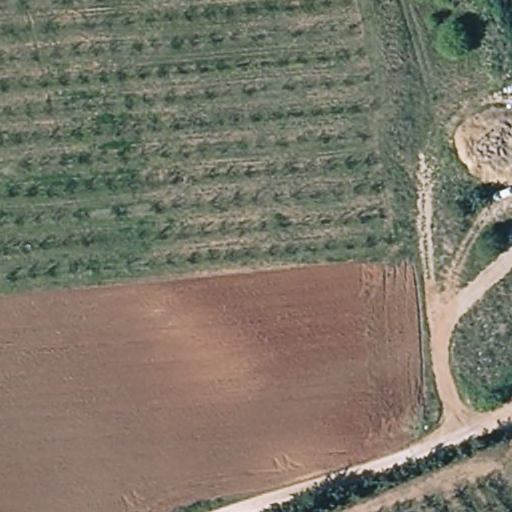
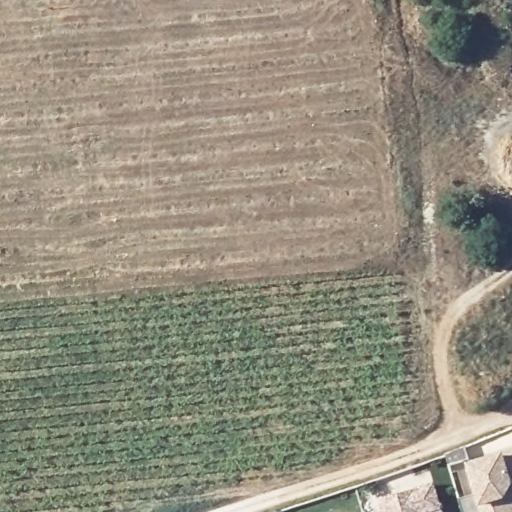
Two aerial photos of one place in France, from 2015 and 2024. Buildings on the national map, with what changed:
new [(480,493),(471,465),(512,452),(512,512),(465,512),(461,499),(480,493)]
new [(437,482),(444,506),(427,512),(388,512),(384,496),(437,482)]
new [(444,506),(446,512),(427,512),(444,506)]

